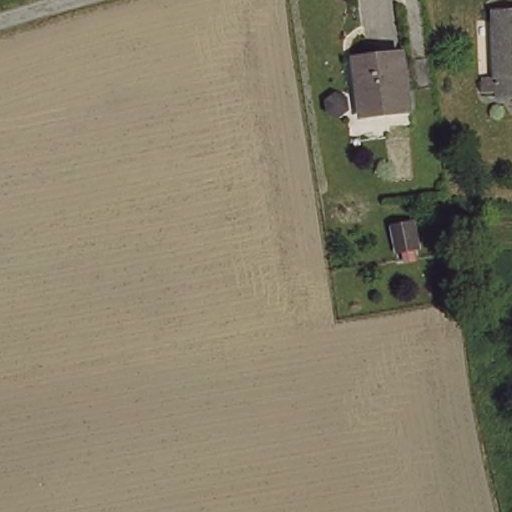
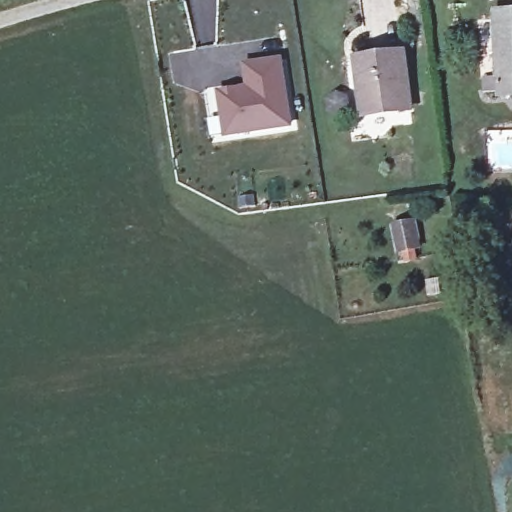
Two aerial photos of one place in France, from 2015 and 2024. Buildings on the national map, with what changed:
unchanged [(496,4),(512,4),(512,91),(501,91),(496,4)]
unchanged [(409,106),(361,114),(353,59),(402,52),(409,106)]
new [(214,89),(245,85),(243,63),(283,57),(293,128),(224,138),(214,89)]
unchanged [(348,97),(349,109),(338,117),(326,109),(326,100),(335,91),(348,97)]
unchanged [(417,249),(398,252),(394,225),(413,222),(417,249)]

